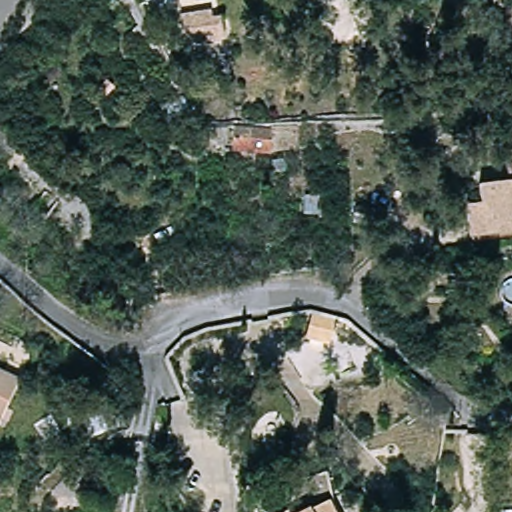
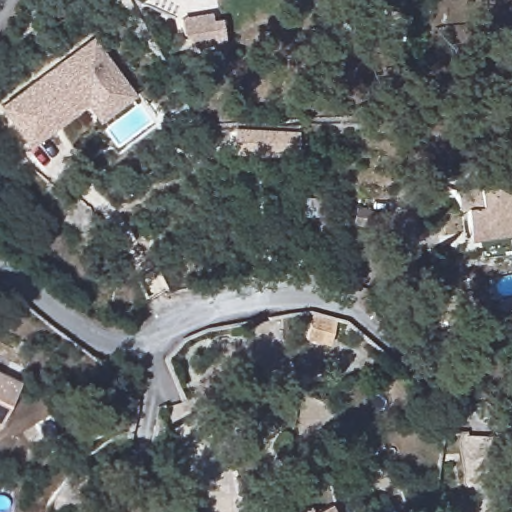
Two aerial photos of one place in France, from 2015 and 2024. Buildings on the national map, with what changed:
unchanged [(212,14),(213,21),(222,20),(226,43),(197,47),(185,36),(183,19),(212,14)]
new [(102,118),(90,100),(31,140),(4,101),(98,37),(125,76),(137,94),(102,118)]
unchanged [(265,129),(264,153),(226,153),(224,130),(265,129)]
unchanged [(465,210),(480,208),(477,191),(506,187),(505,169),(512,168),(512,238),(468,243),(465,210)]
unchanged [(384,230),(355,220),(359,203),(387,212),(384,230)]
unchanged [(9,384),(0,400),(0,380),(9,384)]
unchanged [(332,512),(320,512),(331,507),(332,512)]

